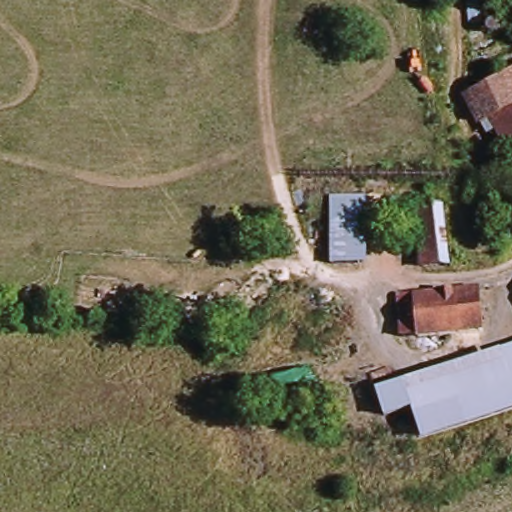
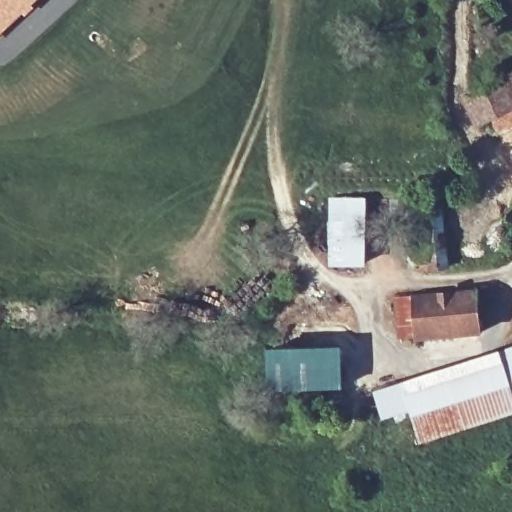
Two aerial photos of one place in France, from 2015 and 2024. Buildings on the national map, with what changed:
new [(0,36),(0,0),(39,0),(0,36)]
unchanged [(507,78),(512,75),(512,87),(507,78)]
unchanged [(492,121),(476,127),(466,101),(507,78),(512,87),(512,111),(492,121)]
unchanged [(509,150),(506,153),(492,121),(512,111),(512,156),(509,150)]
unchanged [(330,200),(367,200),(366,268),(332,269),(330,200)]
unchanged [(412,228),(393,230),(390,202),(411,200),(412,210),(442,209),(449,271),(419,273),(412,228)]
unchanged [(482,336),(400,340),(397,296),(477,291),(482,336)]
new [(267,350),(341,347),(343,388),(270,393),(267,350)]
unchanged [(421,446),(413,415),(385,423),(375,393),(500,354),(512,350),(512,416),(421,446)]

